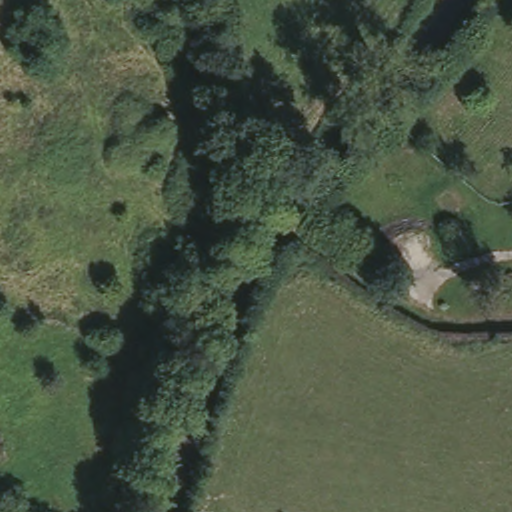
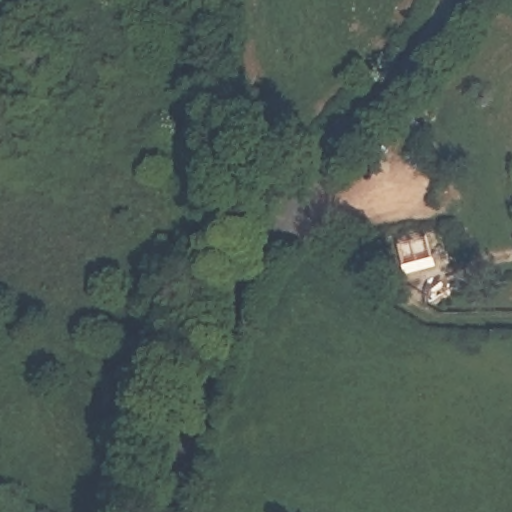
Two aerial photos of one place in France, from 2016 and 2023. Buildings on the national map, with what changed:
unchanged [(70,30),(77,61),(60,65),(54,32),(70,30)]

